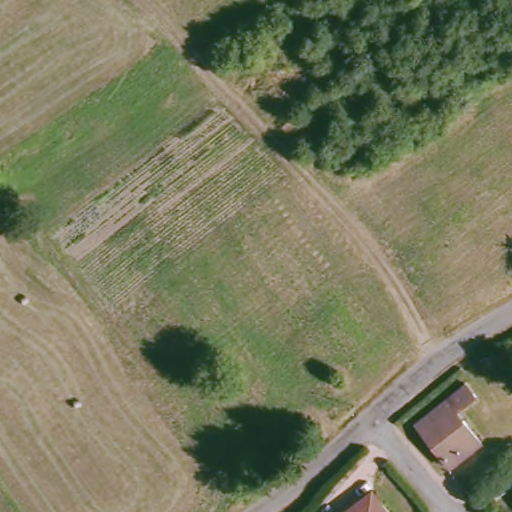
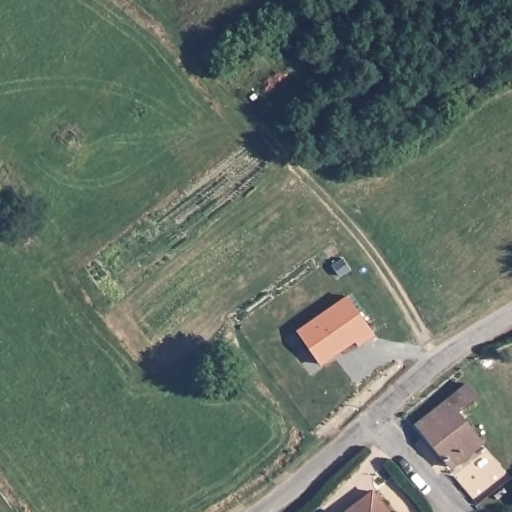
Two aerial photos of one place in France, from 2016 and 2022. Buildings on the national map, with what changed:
new [(340,259),(347,270),(337,277),(330,265),(340,259)]
new [(347,295),(372,333),(355,344),(352,340),(318,364),(295,330),(347,295)]
unchanged [(482,398),(459,415),(465,424),(470,420),(487,443),(457,467),(420,421),(470,383),(482,398)]
unchanged [(370,491),(387,512),(343,512),(370,491)]

